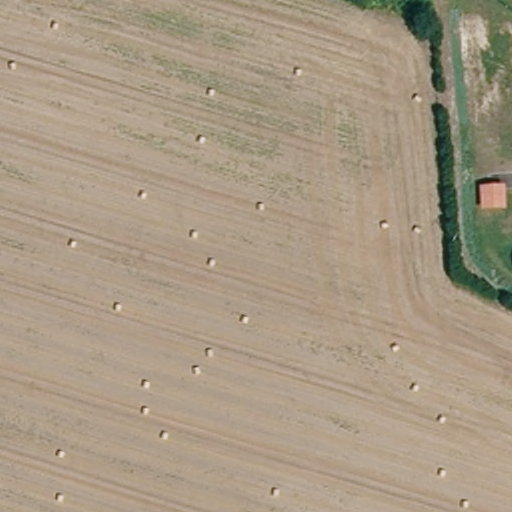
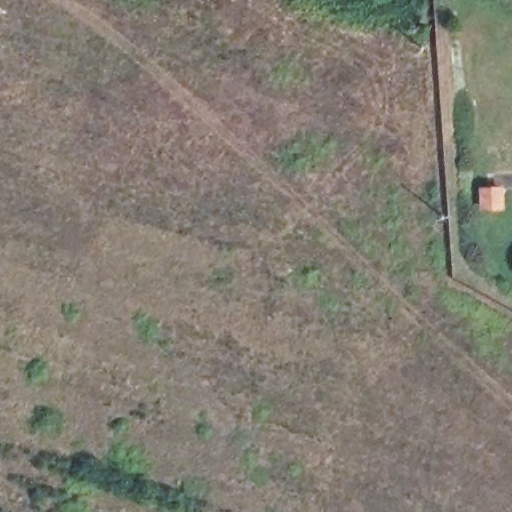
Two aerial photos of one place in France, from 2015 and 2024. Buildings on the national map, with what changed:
unchanged [(504,184),(504,211),(478,210),(478,185),(504,184)]

